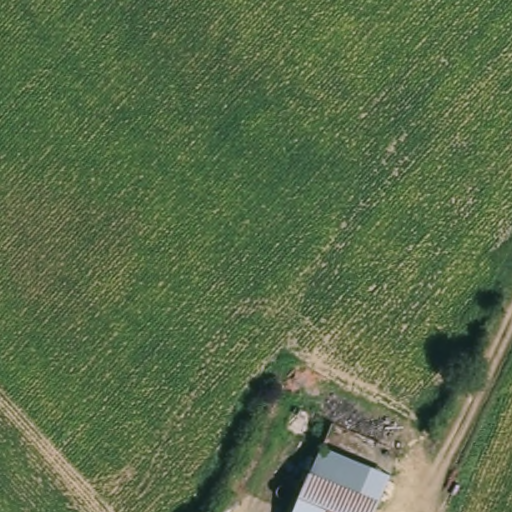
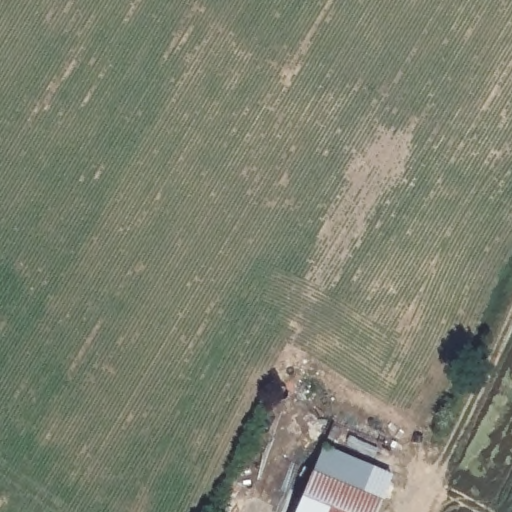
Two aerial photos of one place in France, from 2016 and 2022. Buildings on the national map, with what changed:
unchanged [(318,455),(384,479),(371,512),(300,512),(296,510),(318,455)]
unchanged [(300,512),(295,512),(296,510),(300,512)]

